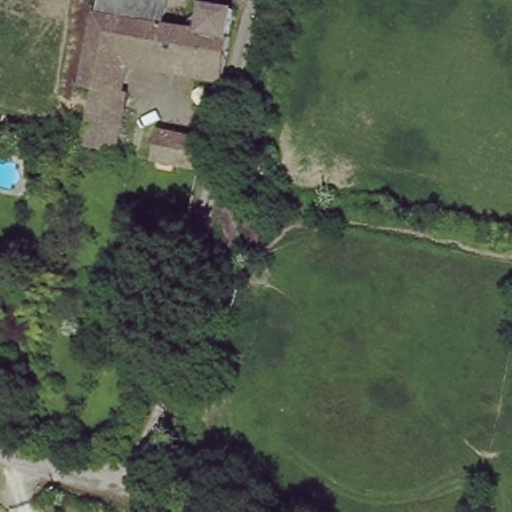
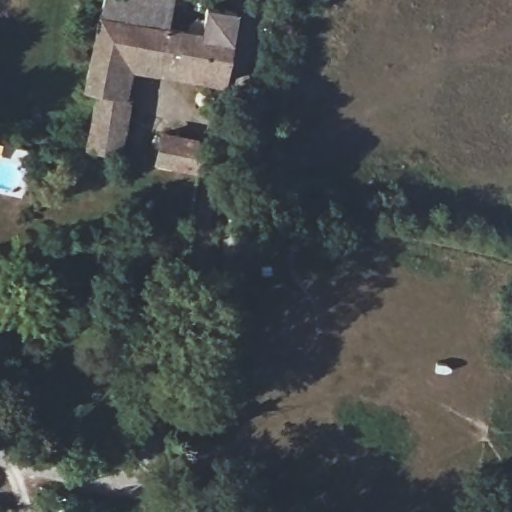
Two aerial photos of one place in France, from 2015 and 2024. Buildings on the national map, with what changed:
unchanged [(167,0),(161,30),(104,21),(102,21),(105,0),(167,0)]
unchanged [(233,74),(129,56),(120,94),(135,99),(122,152),(90,145),(102,92),(88,90),(102,21),(104,21),(161,30),(205,37),(212,9),(241,13),(235,42),(240,42),(233,74)]
unchanged [(0,146),(0,126),(5,127),(0,146)]
unchanged [(213,171),(155,159),(162,131),(206,139),(218,147),(213,171)]
unchanged [(241,263),(218,258),(226,208),(250,212),(241,263)]
unchanged [(230,346),(205,341),(216,281),(241,288),(230,346)]

